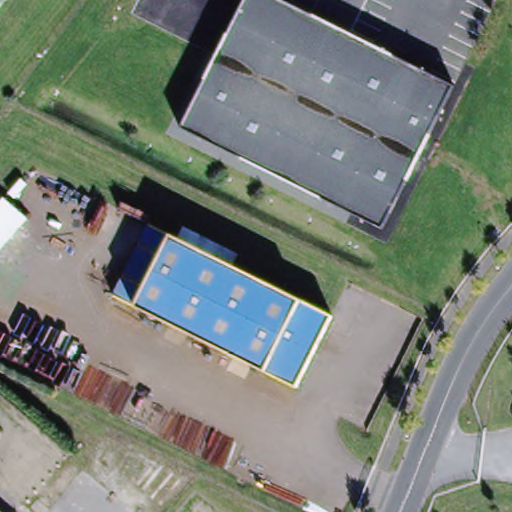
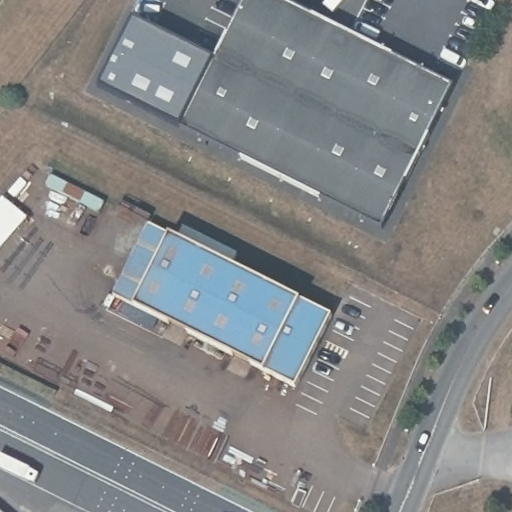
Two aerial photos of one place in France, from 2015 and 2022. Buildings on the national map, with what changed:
unchanged [(384,230),(183,126),(246,0),(277,0),(454,90),(384,230)]
new [(99,84),(132,13),(218,56),(183,126),(99,84)]
unchanged [(114,298),(150,226),(171,237),(135,309),(114,298)]
unchanged [(296,391),(135,309),(171,237),(332,319),(296,391)]

